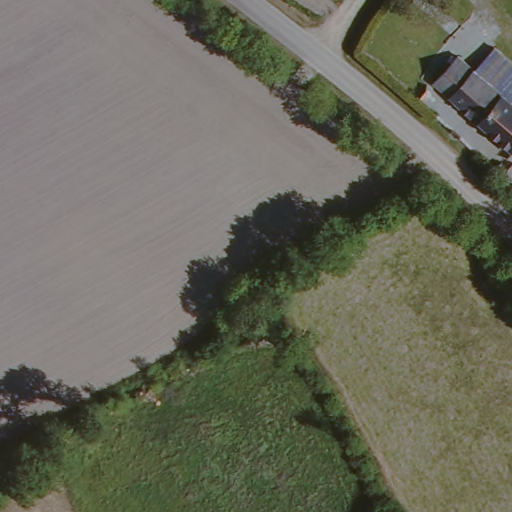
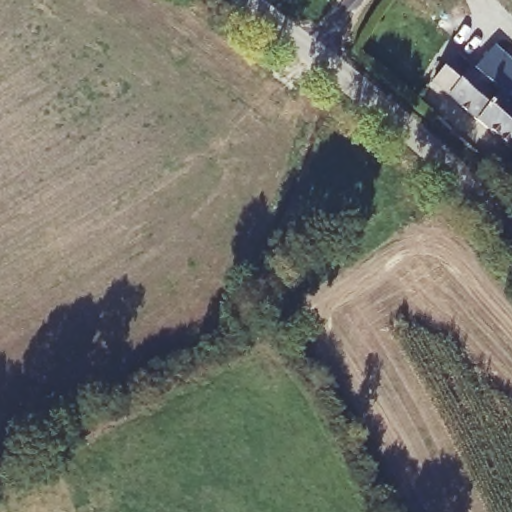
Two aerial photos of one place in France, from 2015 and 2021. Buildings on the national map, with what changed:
unchanged [(433,81),(457,54),(473,68),(492,46),(512,64),(512,150),(433,81)]

